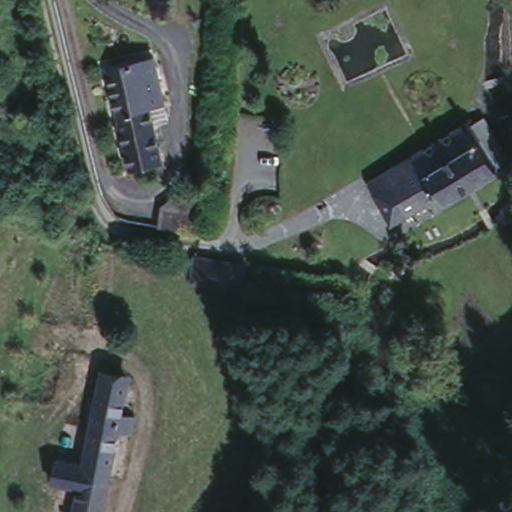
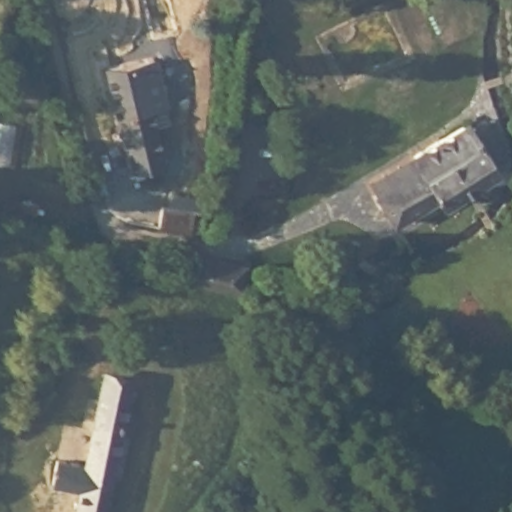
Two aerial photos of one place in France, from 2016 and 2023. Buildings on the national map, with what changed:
unchanged [(147,56),(160,101),(145,106),(162,162),(130,172),(99,71),(147,56)]
unchanged [(413,153),(470,121),(477,135),(481,136),(498,167),(491,172),(441,200),(436,194),(392,218),(375,190),(369,178),(413,153)]
unchanged [(157,202),(165,187),(190,190),(189,206),(187,213),(195,215),(193,228),(154,222),(157,202)]
unchanged [(63,222),(67,212),(81,216),(79,227),(63,222)]
unchanged [(190,281),(194,254),(195,254),(245,260),(242,287),(190,281)]
unchanged [(114,432),(98,512),(71,512),(76,488),(51,483),(56,459),(81,464),(97,374),(124,380),(138,383),(134,399),(130,419),(126,434),(114,432)]

